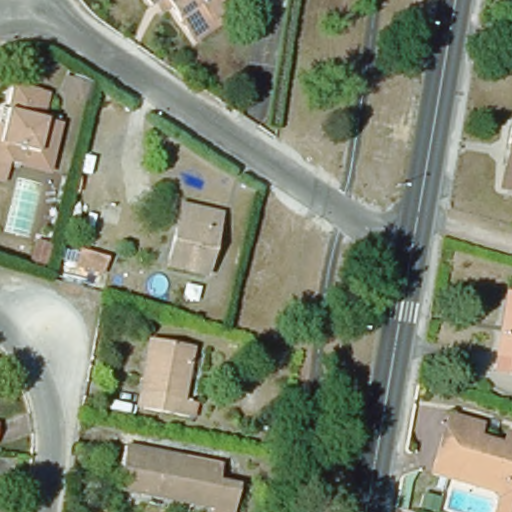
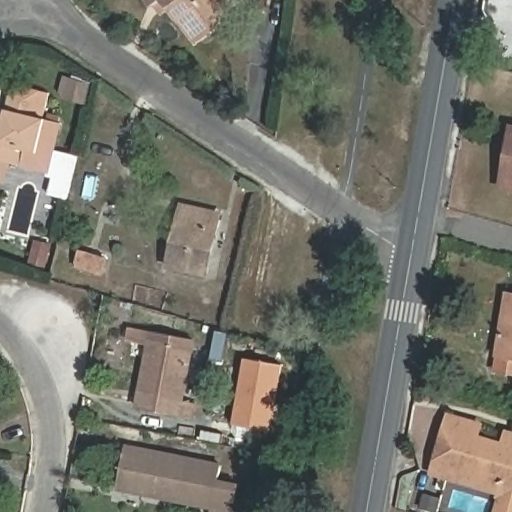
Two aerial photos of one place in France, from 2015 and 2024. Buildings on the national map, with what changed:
unchanged [(183,44),(178,37),(157,9),(147,17),(139,6),(135,0),(211,0),(218,9),(203,19),(208,26),(183,44)]
unchanged [(0,120),(1,115),(8,116),(11,100),(13,91),(50,100),(44,125),(61,129),(54,162),(50,177),(23,171),(11,168),(7,188),(0,186),(0,120)]
unchanged [(502,186),(512,126),(512,188),(502,186)]
unchanged [(182,209),(220,217),(205,276),(168,268),(182,209)]
unchanged [(76,254),(100,261),(96,276),(71,268),(76,254)]
unchanged [(512,296),(512,372),(496,369),(508,295),(512,296)]
unchanged [(190,350),(180,401),(190,403),(187,418),(130,406),(133,392),(140,360),(144,340),(190,350)]
new [(284,365),(271,431),(233,423),(245,358),(284,365)]
unchanged [(434,469),(450,414),(480,423),(512,433),(512,512),(492,512),(496,489),(434,469)]
unchanged [(219,480),(239,484),(234,512),(211,512),(213,505),(118,488),(126,445),(222,464),(219,480)]

